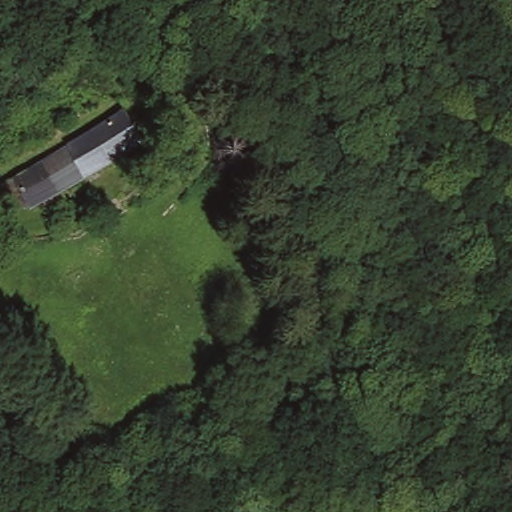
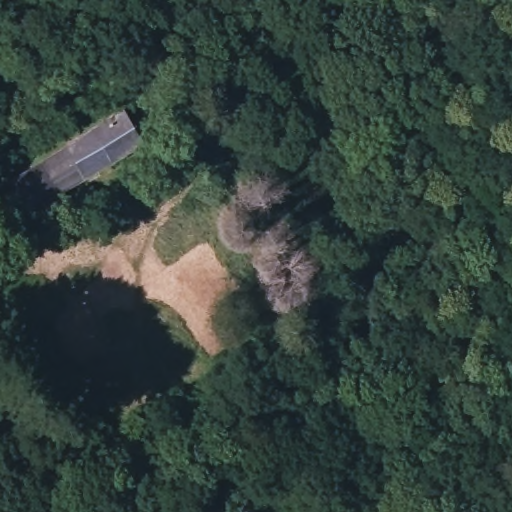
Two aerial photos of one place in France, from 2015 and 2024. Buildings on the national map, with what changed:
unchanged [(45,188),(41,191),(36,193),(33,195),(21,202),(20,198),(6,206),(0,194),(0,176),(68,139),(65,134),(118,105),(120,104),(140,133),(58,181),(45,188)]

